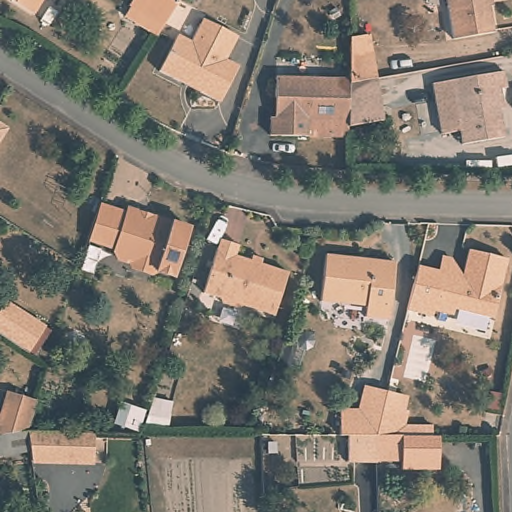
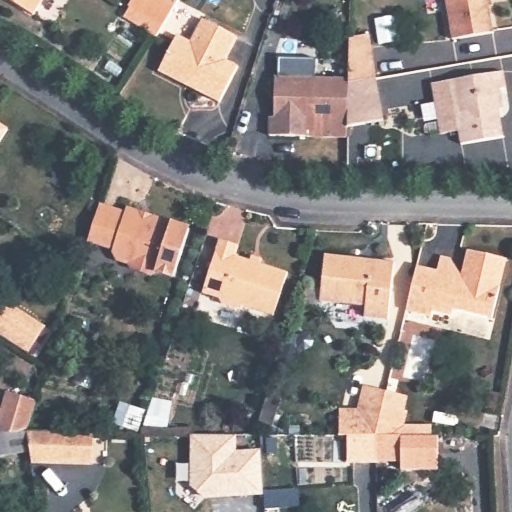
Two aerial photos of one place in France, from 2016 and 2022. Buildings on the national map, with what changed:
unchanged [(17,0),(37,0),(31,9),(17,0)]
unchanged [(174,14),(161,36),(126,15),(135,0),(183,0),(174,14)]
unchanged [(490,30),(450,37),(444,0),(485,0),(490,30)]
unchanged [(227,65),(242,72),(226,103),(205,94),(205,89),(185,78),(182,81),(161,72),(179,35),(190,41),(201,20),(240,37),(227,65)]
unchanged [(272,140),(272,122),(277,121),(278,81),(350,82),(351,42),(368,41),(375,81),(384,126),(350,131),(350,140),(272,140)]
unchanged [(511,92),(512,94),(512,105),(508,105),(512,124),(512,141),(473,148),(470,134),(452,138),(443,87),(512,74),(512,91),(511,92)]
unchanged [(0,140),(0,122),(7,126),(0,140)]
unchanged [(125,207),(137,211),(141,220),(154,223),(156,217),(192,227),(177,276),(160,271),(155,273),(134,265),(134,262),(119,257),(116,250),(105,246),(90,242),(101,206),(115,211),(124,213),(125,207)]
unchanged [(269,316),(252,311),(248,315),(235,312),(233,304),(201,296),(218,239),(235,244),(233,253),(245,256),(245,262),(280,273),(269,316)]
unchanged [(445,256),(453,258),(463,275),(470,250),(507,258),(494,314),(455,306),(453,309),(433,305),(432,309),(410,305),(420,264),(441,270),(445,256)]
unchanged [(390,319),(369,319),(368,308),(323,307),(325,256),(393,260),(390,319)]
unchanged [(45,326),(27,353),(0,335),(0,308),(5,301),(45,326)]
unchanged [(0,452),(0,435),(0,422),(11,391),(41,401),(32,432),(92,433),(94,458),(34,456),(32,447),(0,452)]
unchanged [(407,463),(383,462),(383,468),(351,467),(350,436),(336,436),(338,411),(356,411),(360,391),(372,392),(384,395),(385,393),(404,398),(397,425),(402,427),(400,436),(445,434),(445,473),(407,471),(407,463)]
unchanged [(145,413),(138,434),(112,428),(118,406),(145,413)]
new [(236,435),(236,454),(262,451),(267,493),(208,498),(195,486),(194,435),(236,435)]

